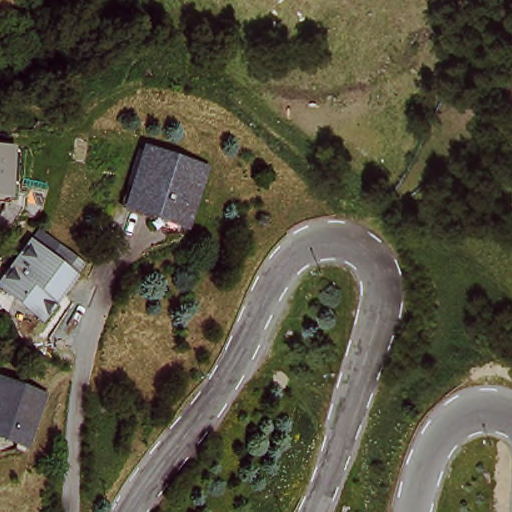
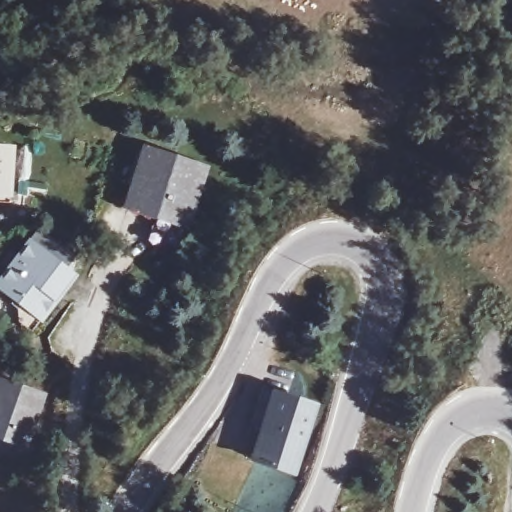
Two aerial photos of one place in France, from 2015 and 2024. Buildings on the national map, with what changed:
unchanged [(21,142),(17,194),(0,193),(0,140),(21,142)]
unchanged [(150,220),(154,206),(125,196),(141,144),(199,163),(185,210),(179,230),(150,220)]
unchanged [(73,271),(64,282),(34,321),(0,294),(0,278),(23,249),(32,237),(55,256),(66,265),(73,271)]
unchanged [(0,439),(0,380),(39,395),(26,435),(21,447),(0,439)]
new [(270,388),(321,405),(296,478),(248,458),(270,388)]

